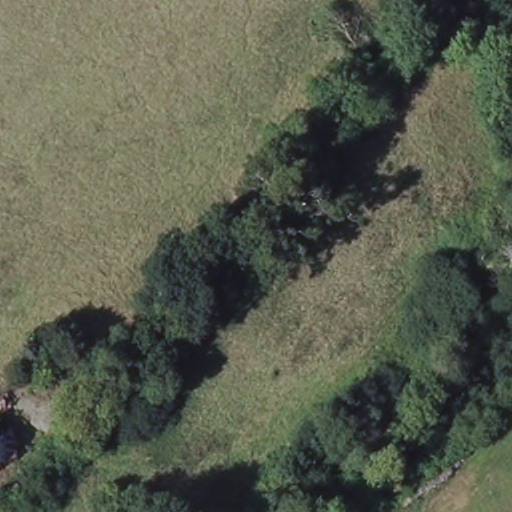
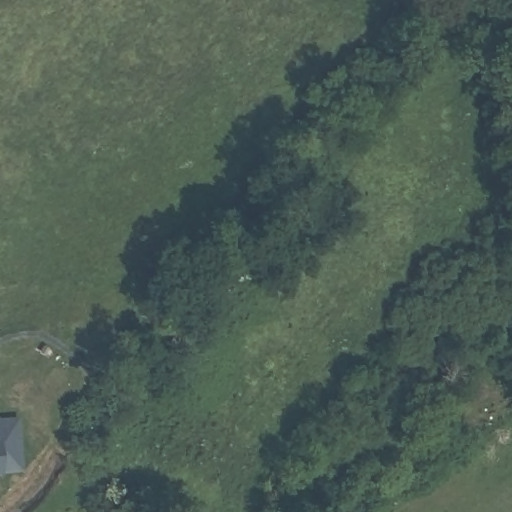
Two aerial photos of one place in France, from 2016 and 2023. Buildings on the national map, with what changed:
demolished [(5,473),(0,473),(0,402),(5,473)]
new [(20,471),(0,472),(0,419),(17,417),(20,471)]

